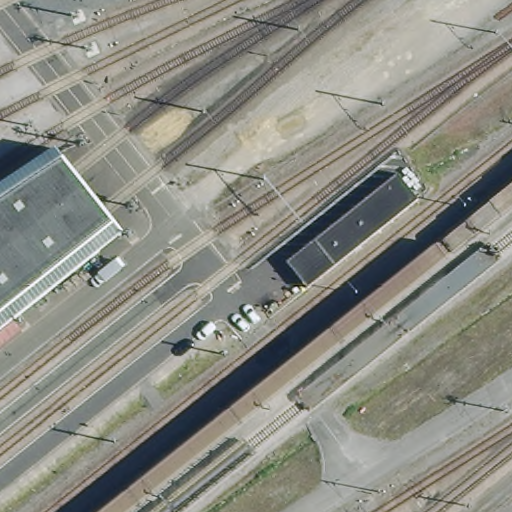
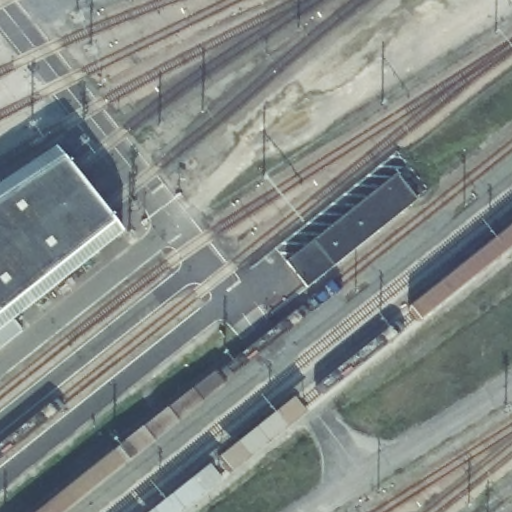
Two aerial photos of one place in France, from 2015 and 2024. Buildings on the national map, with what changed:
unchanged [(55,151),(118,227),(0,318),(0,190),(55,151)]
unchanged [(397,174),(418,200),(307,289),(286,262),(397,174)]

